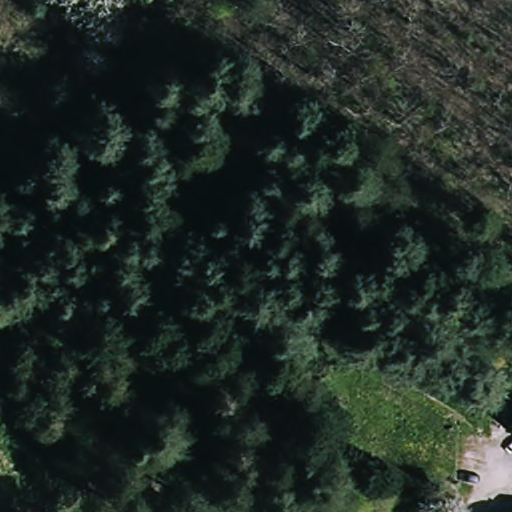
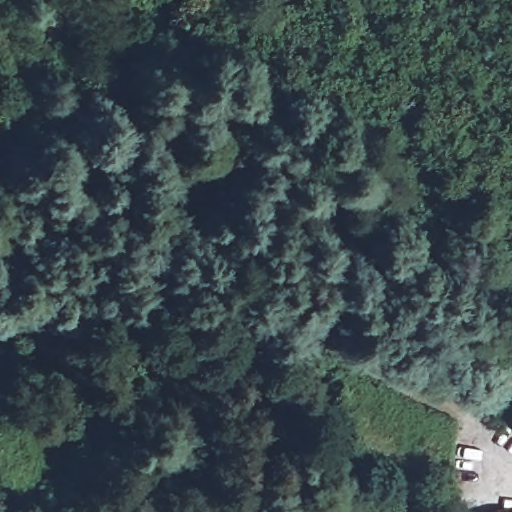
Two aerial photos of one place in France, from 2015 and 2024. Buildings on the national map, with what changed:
unchanged [(508,508),(512,508),(512,512),(498,512),(508,508)]

